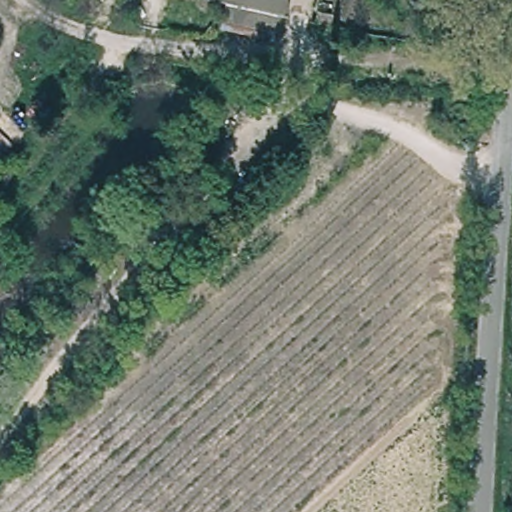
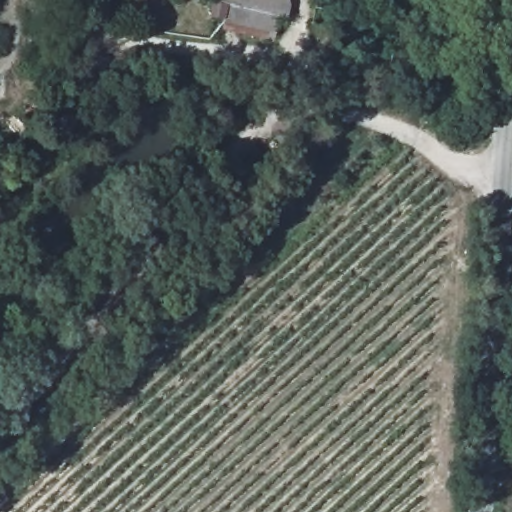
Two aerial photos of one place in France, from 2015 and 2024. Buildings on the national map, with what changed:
unchanged [(273,19),(265,41),(236,33),(243,10),(212,1),(212,0),(285,0),(279,20),(273,19)]
unchanged [(147,60),(149,71),(147,71),(143,72),(140,69),(137,62),(147,60)]

